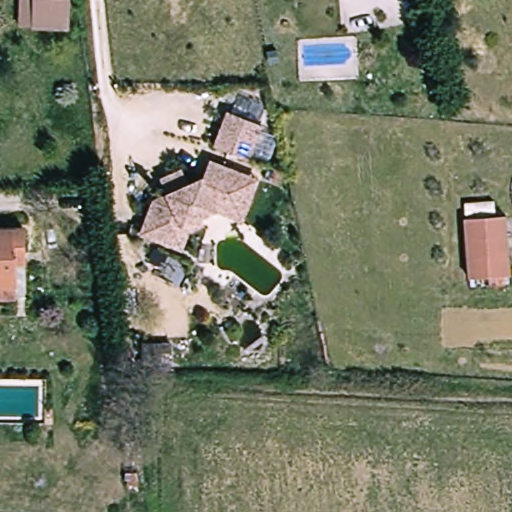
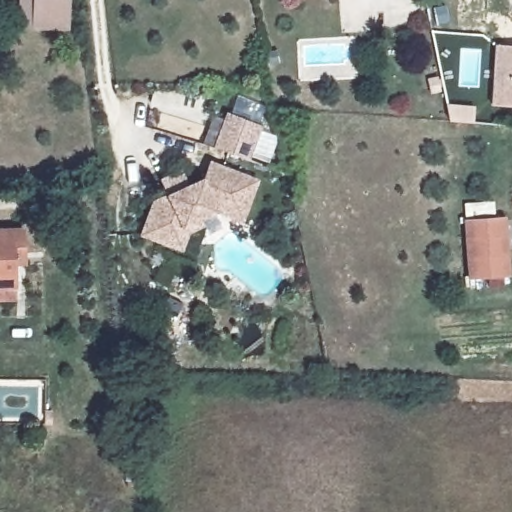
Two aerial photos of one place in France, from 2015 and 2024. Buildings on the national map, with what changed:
unchanged [(74,0),(70,31),(34,27),(19,25),(22,0),(74,0)]
new [(495,44),(512,46),(512,106),(490,104),(495,44)]
unchanged [(268,129),(256,163),(222,151),(235,116),(268,129)]
unchanged [(190,253),(182,250),(149,239),(162,205),(175,199),(169,184),(189,174),(196,189),(211,183),(217,165),(228,169),(252,179),(265,183),(250,224),(223,214),(206,223),(209,229),(196,235),(190,253)]
unchanged [(512,237),(510,276),(470,274),(473,215),(512,217),(512,237)]
unchanged [(0,301),(0,230),(27,229),(27,256),(15,256),(16,288),(16,300),(0,301)]

